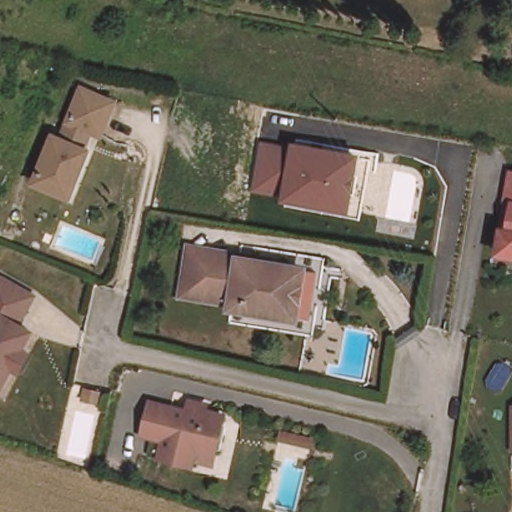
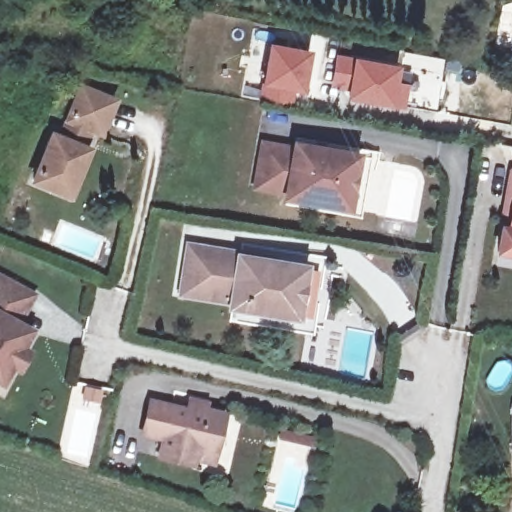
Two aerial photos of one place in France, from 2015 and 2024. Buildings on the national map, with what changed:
new [(310,53),(302,91),(294,89),(291,106),(262,101),(265,84),(271,45),(310,53)]
new [(397,67),(394,84),(407,87),(402,106),(351,96),(353,88),(333,85),(338,57),(357,61),(397,67)]
unchanged [(58,142),(64,145),(85,94),(116,107),(103,138),(90,133),(82,152),(91,156),(74,200),(39,186),(58,142)]
unchanged [(358,211),(342,209),(281,198),(282,193),(250,187),(258,142),(290,148),(291,143),(352,155),(367,158),(358,211)]
unchanged [(512,175),(512,203),(507,202),(512,175)]
unchanged [(504,216),(512,217),(512,215),(512,254),(499,252),(504,216)]
unchanged [(189,250),(286,266),(310,270),(303,312),(289,310),(226,300),(224,299),(226,295),(183,288),(189,250)]
unchanged [(16,367),(10,364),(1,382),(0,381),(0,277),(32,294),(17,322),(29,329),(20,347),(25,350),(16,367)]
unchanged [(194,454),(193,463),(161,455),(165,437),(143,432),(151,400),(171,405),(166,424),(178,427),(184,423),(190,399),(206,403),(205,409),(224,414),(216,450),(213,459),(194,454)]

